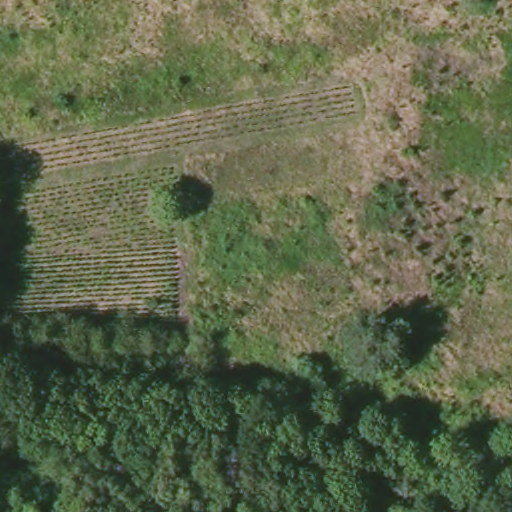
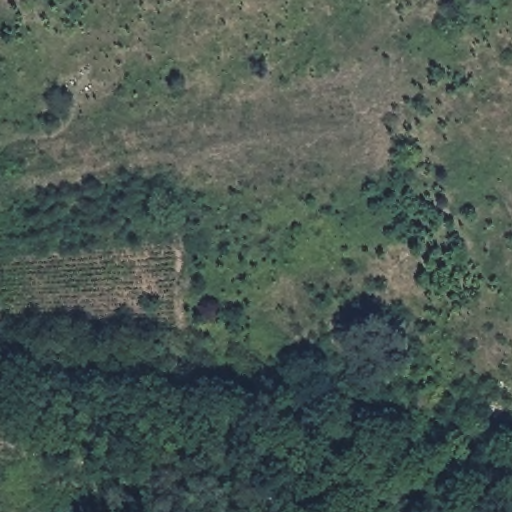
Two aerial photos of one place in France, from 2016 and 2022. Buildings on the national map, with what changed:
[]

